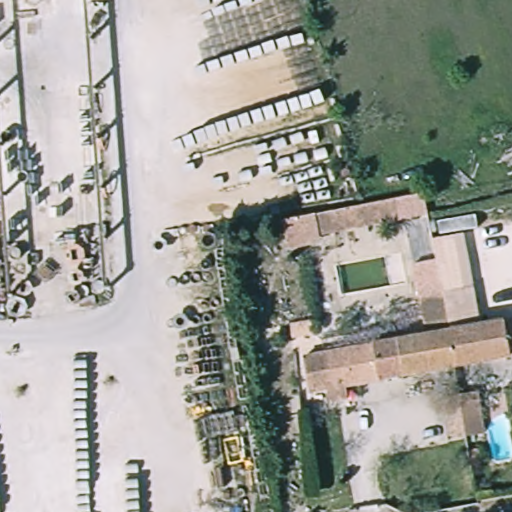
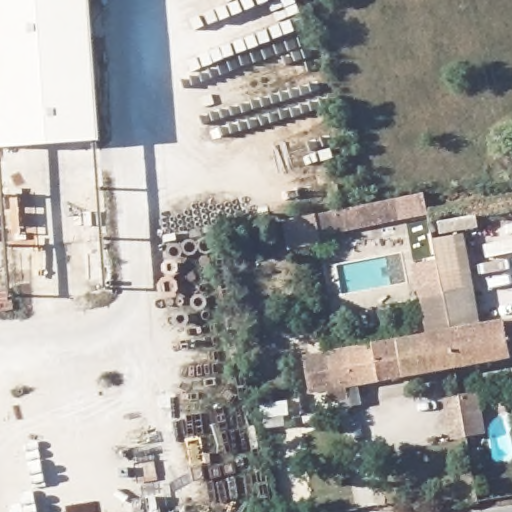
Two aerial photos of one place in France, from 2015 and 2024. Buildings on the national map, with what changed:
new [(0,147),(0,0),(88,0),(96,141),(0,147)]
unchanged [(279,224),(318,215),(401,198),(406,223),(323,239),(283,248),(279,224)]
unchanged [(421,294),(417,264),(441,259),(438,237),(473,231),(482,286),(421,294)]
unchanged [(482,286),(488,324),(447,330),(427,334),(421,294),(482,286)]
unchanged [(488,324),(512,321),(512,356),(454,366),(447,330),(488,324)]
unchanged [(314,390),(307,355),(398,342),(398,338),(427,334),(447,330),(454,366),(314,390)]
unchanged [(447,441),(440,396),(478,389),(485,434),(447,441)]

